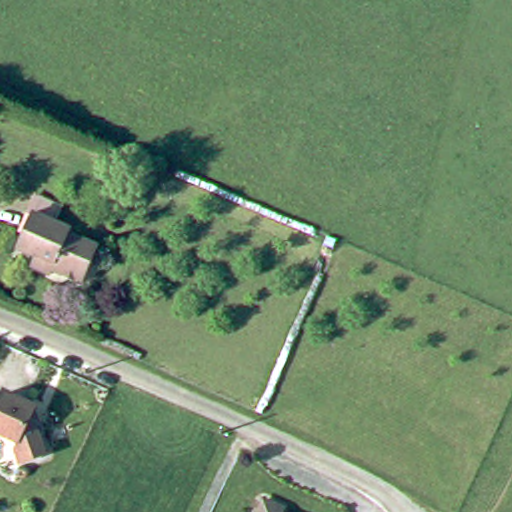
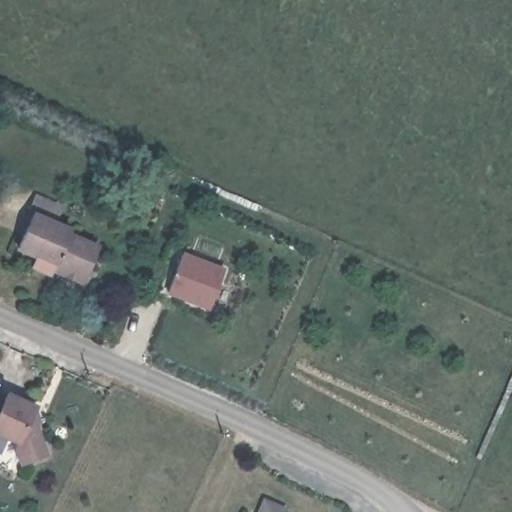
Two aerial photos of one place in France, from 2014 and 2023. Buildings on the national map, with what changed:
unchanged [(37,246),(23,240),(29,226),(22,222),(32,201),(40,185),(66,197),(58,215),(71,221),(73,227),(101,240),(85,275),(56,261),(53,266),(42,261),(32,256),(37,246)]
new [(182,250),(226,266),(210,309),(167,293),(182,250)]
unchanged [(1,386),(31,402),(32,412),(43,451),(17,459),(13,443),(15,437),(0,430),(0,388),(1,386)]
unchanged [(289,501),(286,510),(290,512),(261,512),(270,493),(289,501)]

